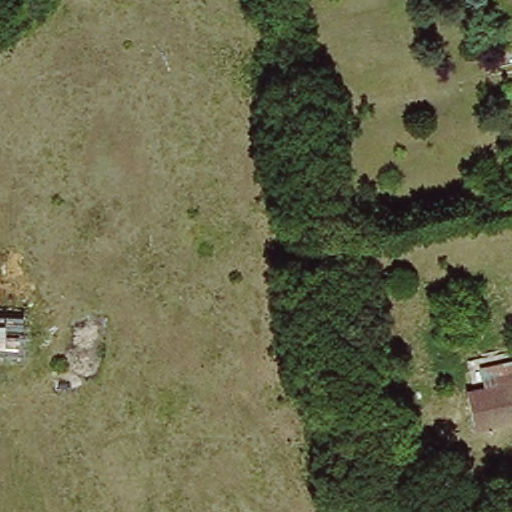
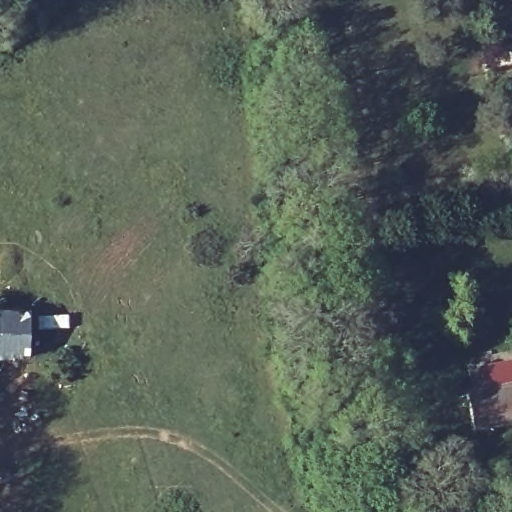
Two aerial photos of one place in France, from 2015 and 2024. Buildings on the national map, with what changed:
new [(0,313),(27,314),(25,358),(0,357),(0,313)]
unchanged [(475,434),(467,393),(488,389),(485,368),(491,367),(512,363),(512,426),(475,434)]

